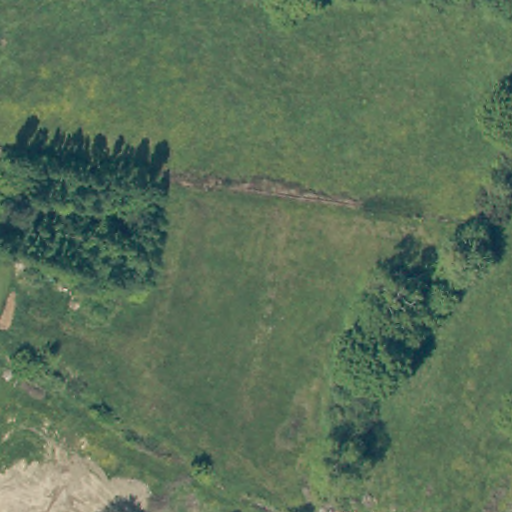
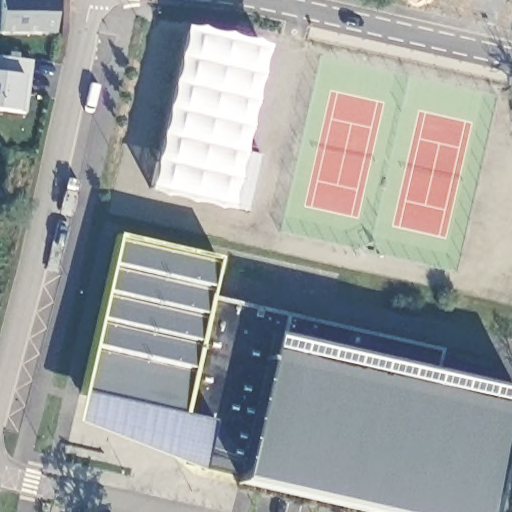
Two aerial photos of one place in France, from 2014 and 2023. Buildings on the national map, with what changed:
new [(54,34),(0,33),(0,0),(54,0),(54,34)]
new [(184,27),(268,47),(230,211),(147,191),(184,27)]
new [(30,61),(28,78),(21,77),(19,93),(26,94),(23,114),(0,110),(0,57),(30,61)]
new [(208,297),(440,350),(444,377),(512,391),(512,417),(489,512),(371,512),(239,482),(243,462),(204,447),(198,472),(72,422),(115,235),(216,258),(208,297)]

